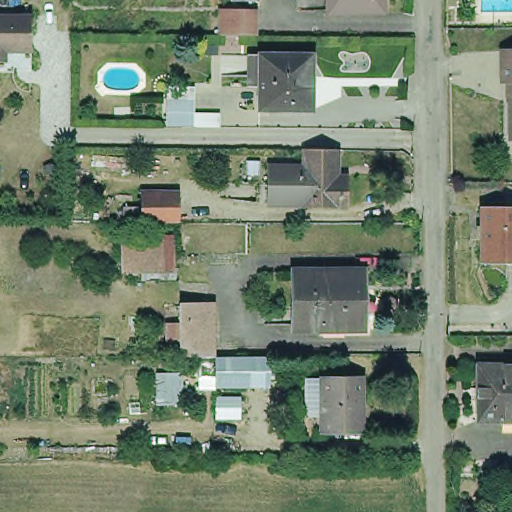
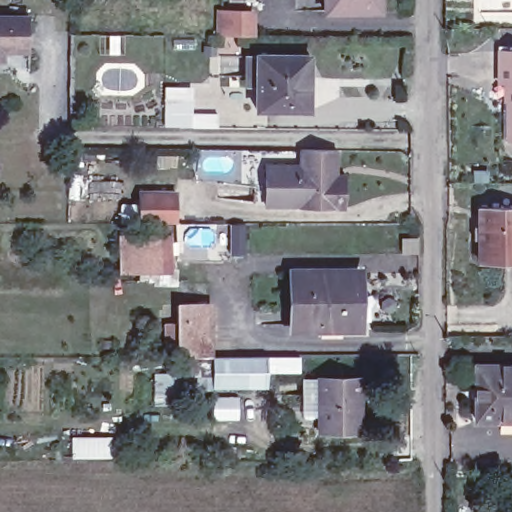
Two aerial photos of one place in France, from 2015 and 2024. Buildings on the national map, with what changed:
unchanged [(249,0),(249,3),(223,2),(223,0),(249,0)]
unchanged [(324,14),(323,0),(378,0),(378,13),(324,14)]
unchanged [(230,36),(213,36),(213,10),(243,11),(243,36),(230,36)]
unchanged [(27,56),(1,56),(1,65),(0,65),(0,20),(27,21),(27,56)]
unchanged [(245,53),(255,53),(255,50),(307,51),(307,102),(254,102),(255,73),(244,73),(245,53)]
unchanged [(503,52),(512,52),(512,141),(511,103),(511,83),(504,83),(503,52)]
unchanged [(163,127),(163,99),(164,87),(191,87),(191,100),(190,127),(163,127)]
unchanged [(342,192),(342,214),(296,214),(296,211),(297,171),(297,155),(320,155),(334,155),(333,181),(343,181),(342,192)]
unchanged [(296,211),(262,211),(262,210),(262,190),(262,171),(297,171),(296,211)]
unchanged [(483,223),(489,223),(489,200),(512,200),(512,256),(489,255),(489,235),(483,234),(483,223)]
unchanged [(141,204),(177,204),(177,234),(140,234),(141,204)]
unchanged [(173,249),(173,280),(121,280),(121,249),(173,249)]
unchanged [(361,331),(311,332),(311,325),(285,325),(285,269),(347,269),(353,269),(354,298),(361,298),(361,331)]
unchanged [(165,327),(176,327),(177,310),(206,309),(207,361),(180,361),(176,361),(176,347),(165,347),(165,327)]
unchanged [(505,421),(505,413),(480,413),(480,354),(512,354),(512,421),(505,421)]
unchanged [(270,361),(270,390),(215,390),(215,361),(270,361)]
unchanged [(315,414),(316,383),(357,383),(357,414),(357,436),(315,437),(315,414)]

